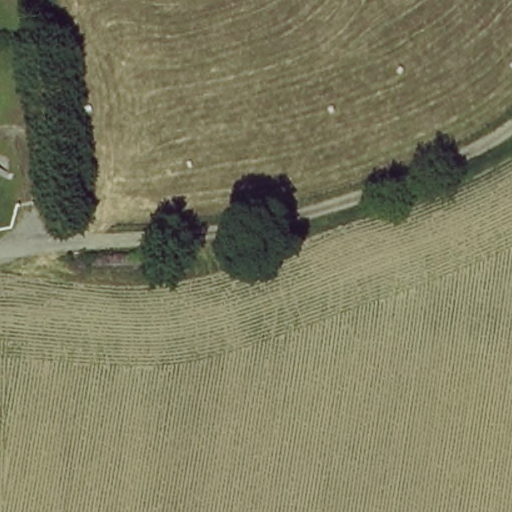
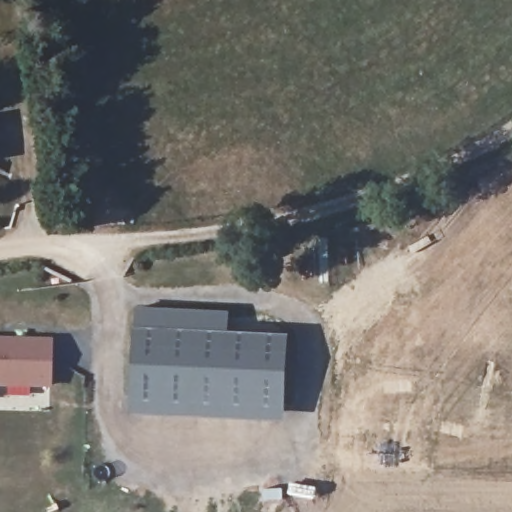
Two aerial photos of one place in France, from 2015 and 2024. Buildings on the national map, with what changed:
new [(290,337),(287,409),(135,401),(139,330),(290,337)]
new [(52,338),(52,388),(0,388),(0,338),(52,338)]

